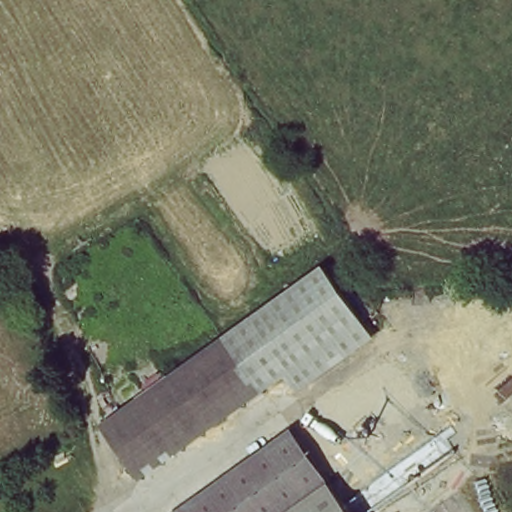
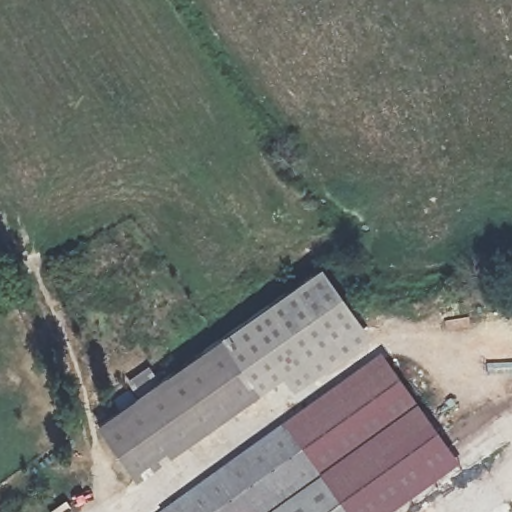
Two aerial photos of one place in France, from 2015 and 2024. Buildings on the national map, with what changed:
unchanged [(324,269),(354,324),(260,390),(223,337),(324,269)]
unchanged [(113,420),(220,340),(226,351),(258,392),(201,433),(142,480),(103,430),(113,420)]
new [(385,360),(423,413),(463,472),(407,512),(348,512),(335,493),(328,483),(288,426),(385,360)]
unchanged [(328,483),(335,493),(348,512),(175,512),(288,426),(328,483)]

